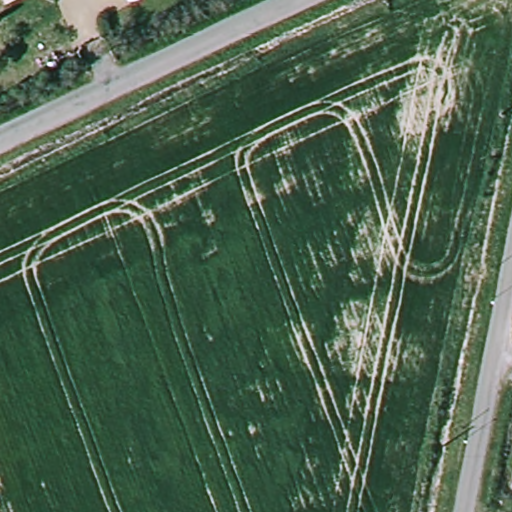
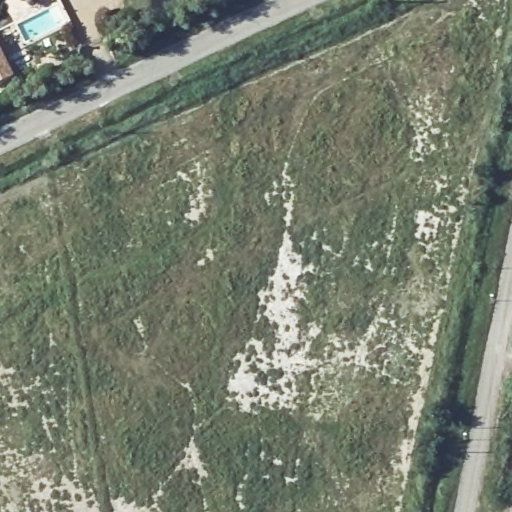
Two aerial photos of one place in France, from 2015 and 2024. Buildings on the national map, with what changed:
new [(0,85),(0,48),(15,77),(0,85)]

